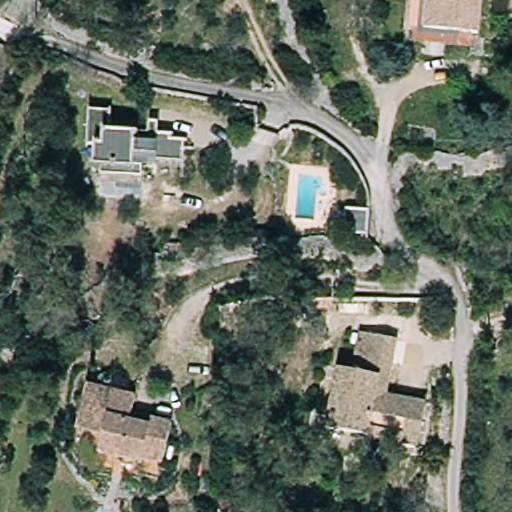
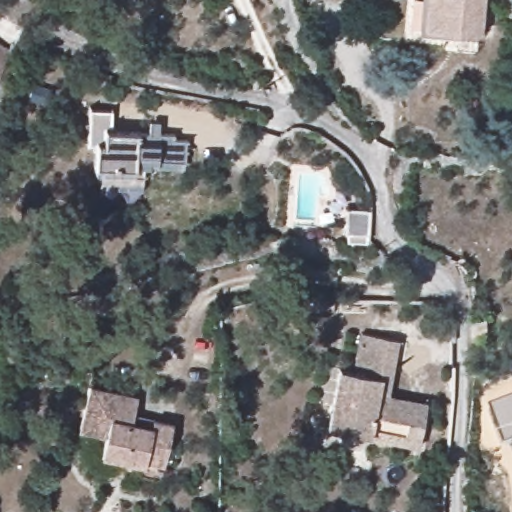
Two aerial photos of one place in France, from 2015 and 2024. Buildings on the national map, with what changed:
unchanged [(421,0),(480,0),(476,40),(418,34),(421,0)]
unchanged [(95,145),(86,144),(87,111),(108,112),(107,132),(146,134),(147,121),(155,121),(155,135),(169,135),(170,140),(185,142),(183,170),(157,169),(157,162),(140,161),(140,177),(93,175),(95,145)]
unchanged [(350,235),(351,210),(376,211),(375,236),(350,235)]
unchanged [(323,432),(335,372),(348,374),(355,336),(395,343),(387,398),(423,405),(415,450),(323,432)]
unchanged [(140,458),(96,448),(105,408),(79,403),(85,378),(133,391),(130,407),(151,412),(170,417),(160,458),(140,453),(140,458)]
new [(512,442),(505,445),(490,406),(512,398),(512,442)]
unchanged [(156,474),(138,468),(136,475),(91,461),(72,432),(79,403),(105,408),(96,448),(140,458),(140,453),(160,458),(156,474)]

